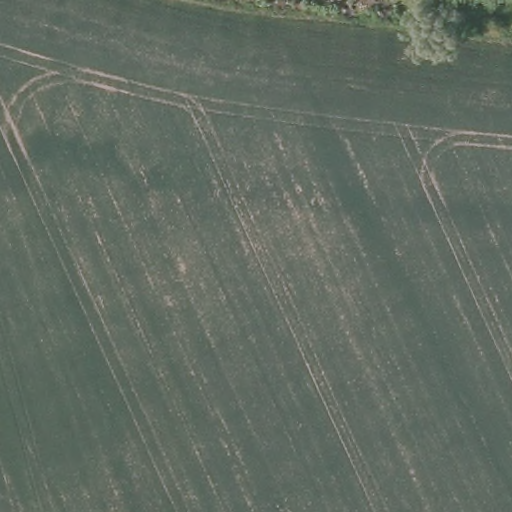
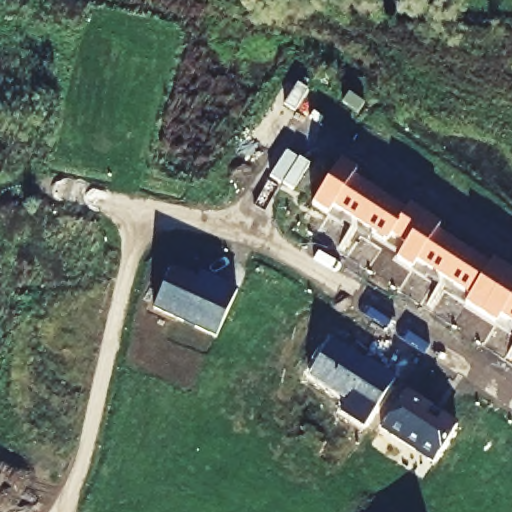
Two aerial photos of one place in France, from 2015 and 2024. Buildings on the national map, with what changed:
new [(353,171),(350,177),(403,212),(407,206),(438,226),(433,232),(487,266),(491,261),(512,275),(512,325),(499,317),(495,322),(463,303),(467,296),(415,262),(409,269),(395,259),(405,246),(389,236),(384,242),(331,207),(326,215),(310,203),(338,162),(353,171)]
new [(196,280),(198,273),(236,290),(215,335),(153,307),(170,268),(196,280)]
new [(365,364),(366,362),(393,378),(363,425),(340,411),(347,400),(308,375),(330,341),(365,364)]
new [(380,427),(403,389),(430,406),(428,409),(455,426),(432,461),(380,427)]

